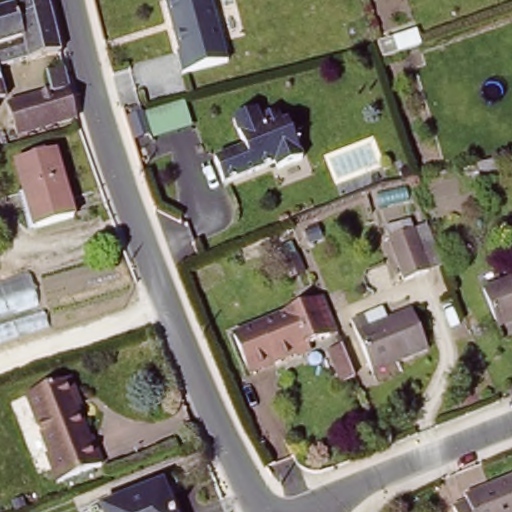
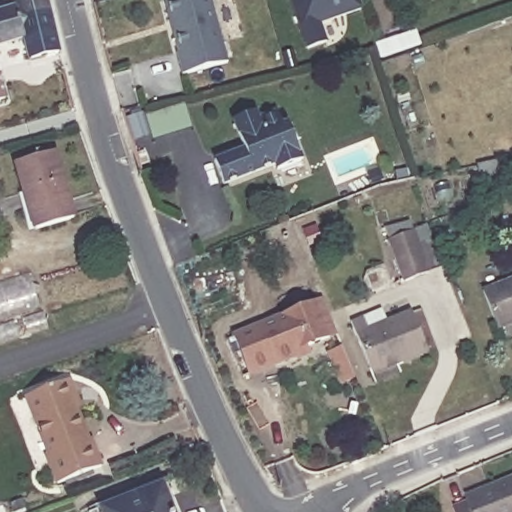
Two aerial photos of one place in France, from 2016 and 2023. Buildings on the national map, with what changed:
unchanged [(17,22),(21,37),(0,44),(0,5),(18,0),(47,0),(50,12),(17,22)]
unchanged [(178,70),(172,48),(175,47),(163,0),(209,0),(223,58),(178,70)]
new [(325,42),(305,48),(289,0),(359,0),(362,10),(320,24),(325,42)]
unchanged [(56,41),(60,56),(27,61),(27,59),(21,37),(17,22),(50,12),(56,41)]
demolished [(70,97),(76,119),(16,136),(7,105),(50,93),(45,75),(64,71),(70,97)]
unchanged [(0,101),(0,85),(4,100),(0,101)]
unchanged [(253,106),(256,112),(275,105),(281,119),(285,117),(301,154),(276,164),(273,158),(222,179),(213,156),(243,144),(231,115),(253,106)]
new [(142,112),(149,132),(135,137),(127,116),(142,112)]
unchanged [(36,231),(33,220),(20,161),(58,151),(74,210),(76,220),(36,231)]
unchanged [(502,175),(484,179),(480,162),(499,159),(502,175)]
unchanged [(411,228),(428,270),(405,280),(387,238),(411,228)]
unchanged [(315,281),(300,287),(291,266),(287,267),(279,247),(297,240),(315,281)]
unchanged [(48,328),(0,344),(0,284),(30,275),(48,328)]
unchanged [(500,327),(485,289),(512,277),(512,322),(500,327)]
unchanged [(298,352),(248,372),(231,332),(315,298),(322,295),(337,330),(329,333),(297,347),(298,352)]
unchanged [(387,322),(410,312),(426,351),(396,364),(394,360),(368,370),(350,323),(382,311),(387,322)]
unchanged [(340,385),(327,355),(342,349),(355,379),(340,385)]
unchanged [(91,442),(102,468),(59,487),(47,458),(50,457),(26,402),(67,383),(77,406),(80,412),(76,413),(88,443),(91,442)]
unchanged [(448,505),(464,498),(462,494),(512,474),(512,512),(452,512),(448,505)]
unchanged [(178,512),(107,512),(106,510),(167,485),(178,512)]

